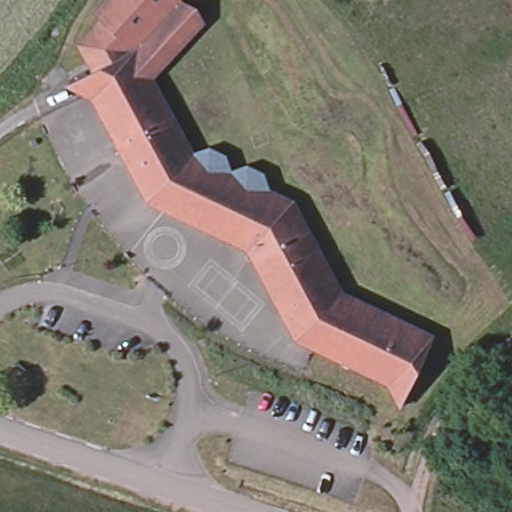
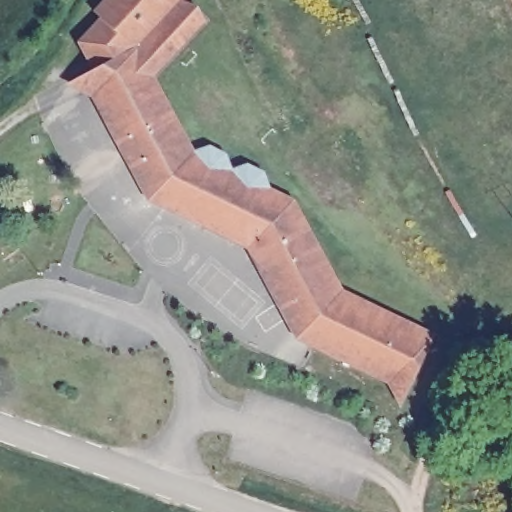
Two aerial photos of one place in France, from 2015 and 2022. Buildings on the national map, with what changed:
unchanged [(137,44),(179,0),(191,0),(195,2),(207,22),(155,75),(195,148),(211,143),(228,151),(232,166),(246,162),(267,170),(271,188),(297,199),(343,289),(433,333),(401,402),(383,375),(292,337),(243,245),(145,198),(90,95),(67,83),(90,70),(137,44)]
unchanged [(100,17),(92,11),(102,0),(179,0),(137,44),(90,70),(77,41),(100,17)]

